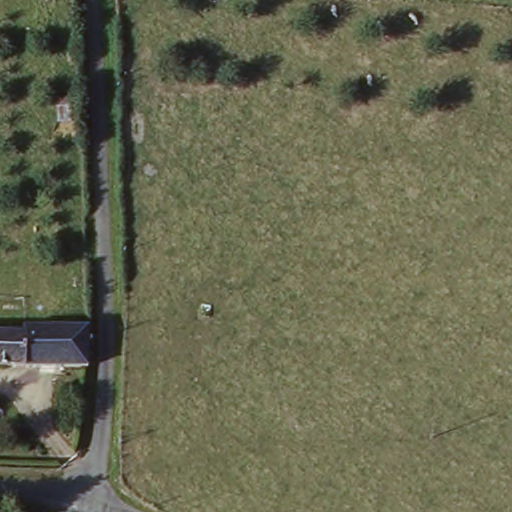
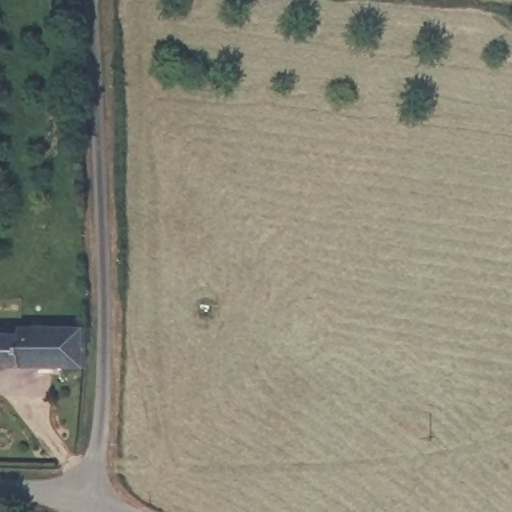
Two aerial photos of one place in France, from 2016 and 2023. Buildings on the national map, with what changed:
unchanged [(39,372),(0,371),(0,337),(22,337),(23,330),(89,331),(91,371),(39,372)]

